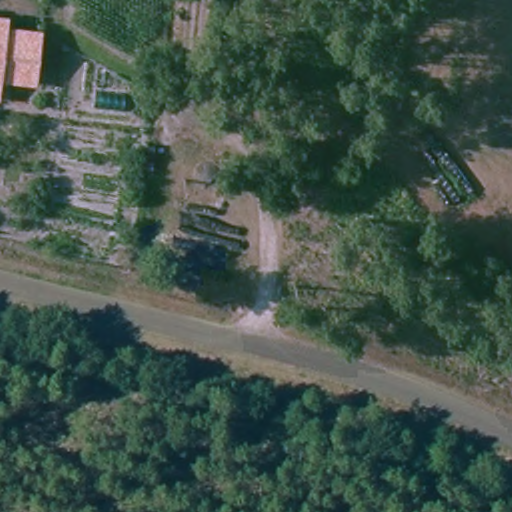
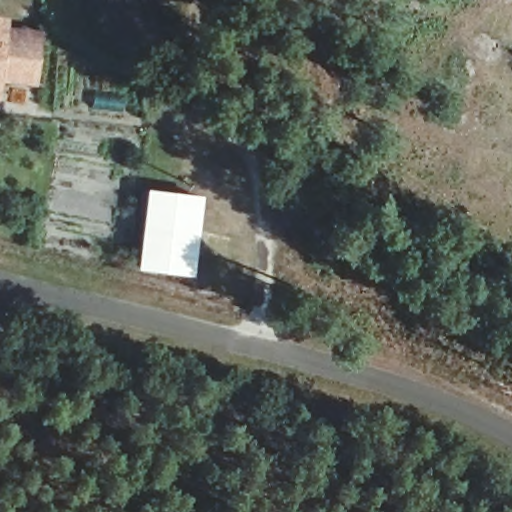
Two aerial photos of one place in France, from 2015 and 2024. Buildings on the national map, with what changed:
demolished [(12,14),(11,54),(0,51),(0,15),(12,14)]
new [(2,82),(0,100),(0,15),(10,16),(9,26),(42,29),(37,86),(2,82)]
demolished [(11,54),(11,64),(0,64),(0,51),(11,54)]
new [(194,276),(138,270),(148,188),(204,195),(194,276)]

